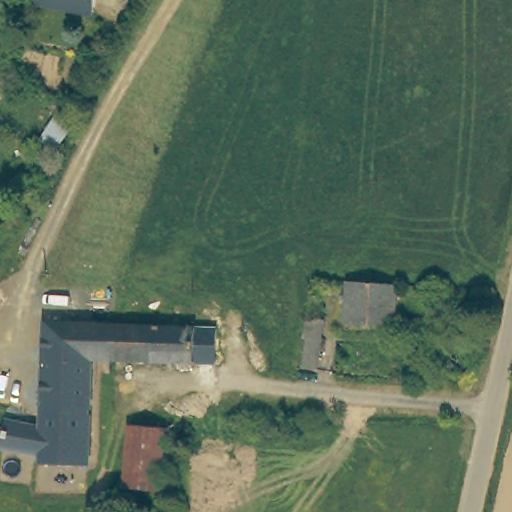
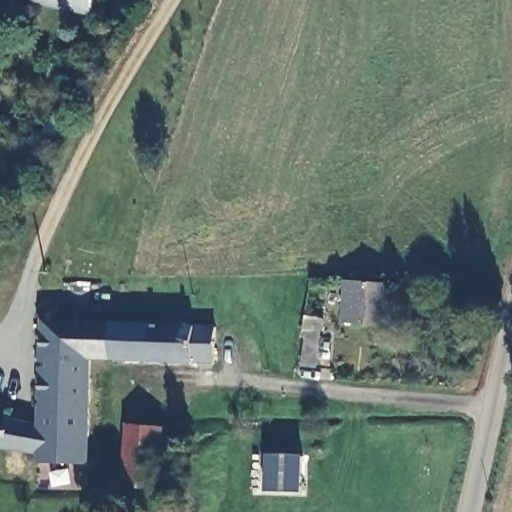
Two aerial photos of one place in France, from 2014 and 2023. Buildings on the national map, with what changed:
unchanged [(88,13),(34,0),(91,0),(88,13)]
unchanged [(402,273),(398,316),(348,312),(351,270),(402,273)]
unchanged [(307,336),(303,335),(307,313),(308,309),(327,311),(327,315),(318,363),(303,360),(307,336)]
unchanged [(109,315),(221,321),(221,333),(218,367),(194,366),(106,360),(90,359),(84,464),(71,464),(71,477),(38,474),(45,311),(109,315)]
unchanged [(0,436),(0,416),(13,417),(30,423),(24,444),(0,436)]
unchanged [(166,487),(138,485),(132,484),(124,484),(129,425),(171,427),(170,446),(166,487)]
new [(269,458),(305,459),(304,493),(269,492),(269,458)]

